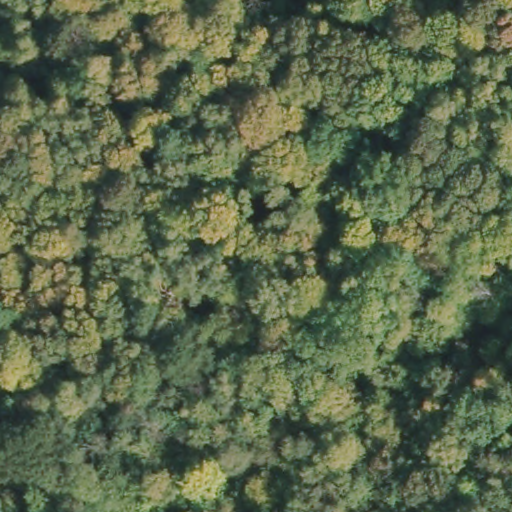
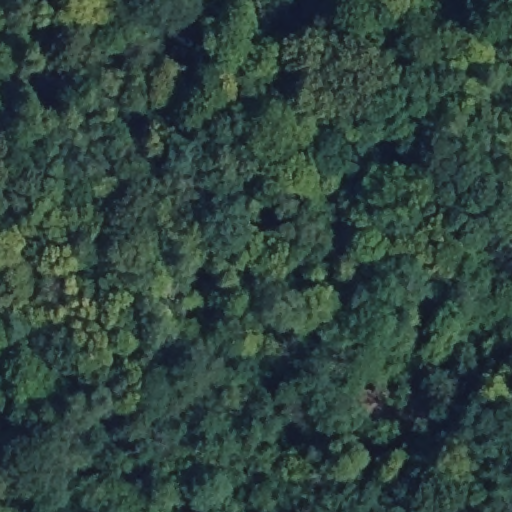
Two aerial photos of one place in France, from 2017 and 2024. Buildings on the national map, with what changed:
unchanged [(440,390),(418,401),(409,381),(433,370),(440,390)]

